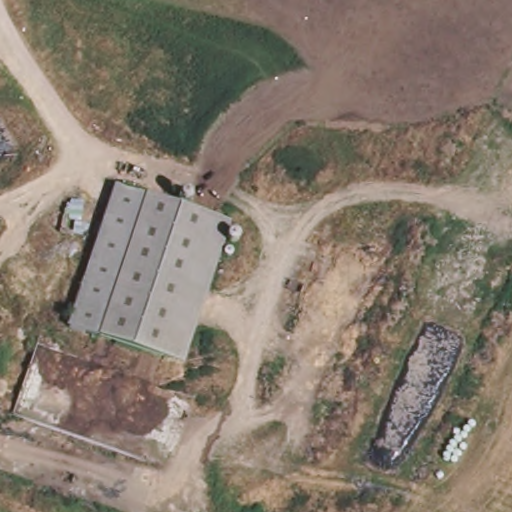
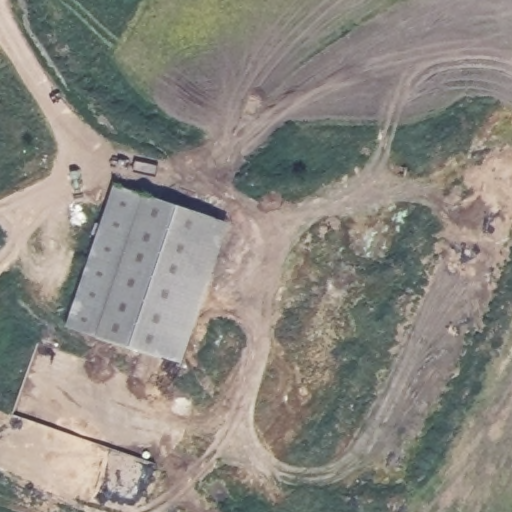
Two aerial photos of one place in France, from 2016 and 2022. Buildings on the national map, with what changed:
unchanged [(217,222),(170,366),(72,334),(120,190),(217,222)]

